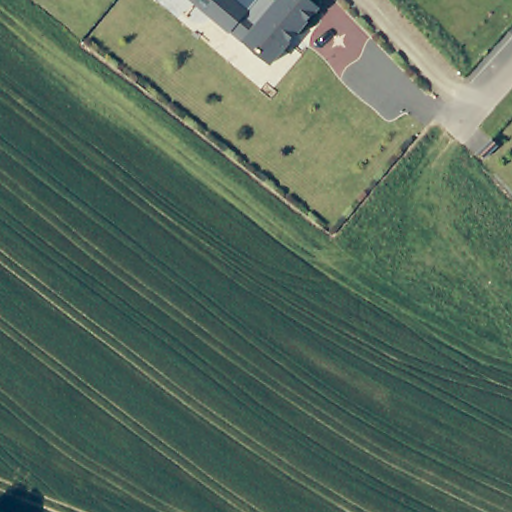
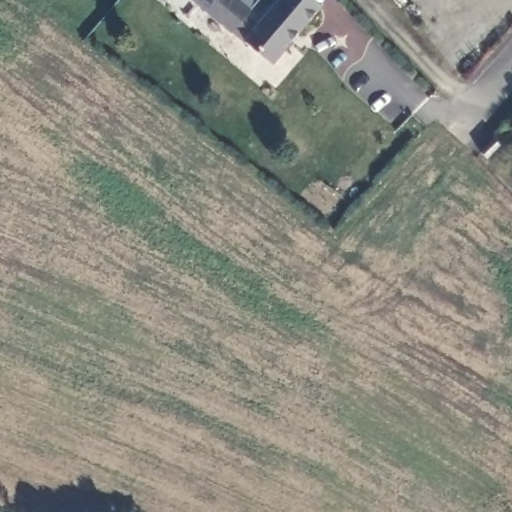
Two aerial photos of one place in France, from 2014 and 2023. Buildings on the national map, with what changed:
unchanged [(254,18),(266,28),(290,0),(310,0),(326,13),(276,70),(251,48),(237,37),(194,0),(269,0),(254,18)]
unchanged [(493,143),(482,156),(473,148),(485,135),(493,143)]

